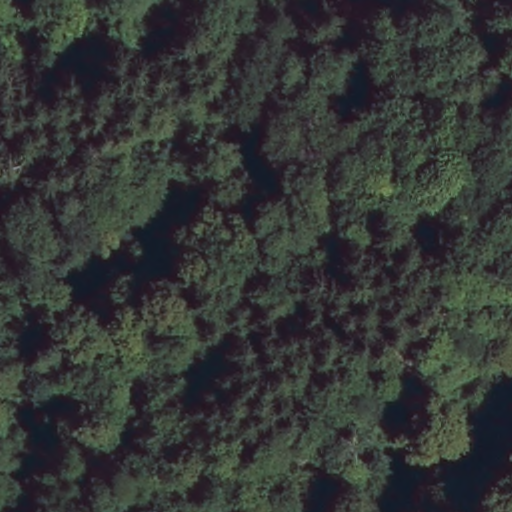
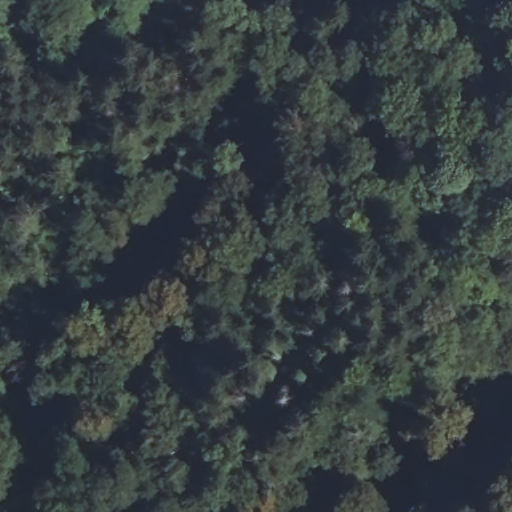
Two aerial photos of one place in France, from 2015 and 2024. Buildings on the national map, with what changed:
unchanged [(381,142),(356,136),(359,110),(382,114),(381,142)]

